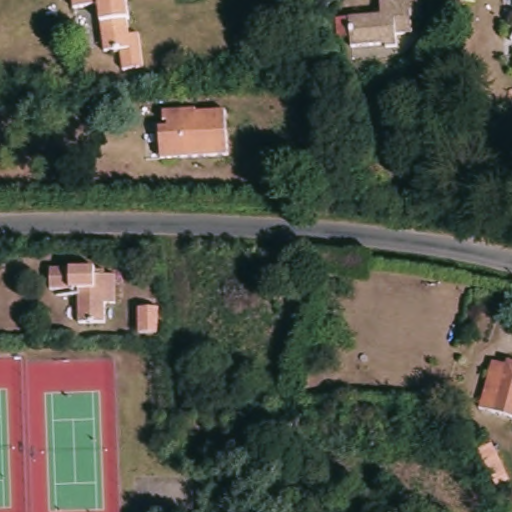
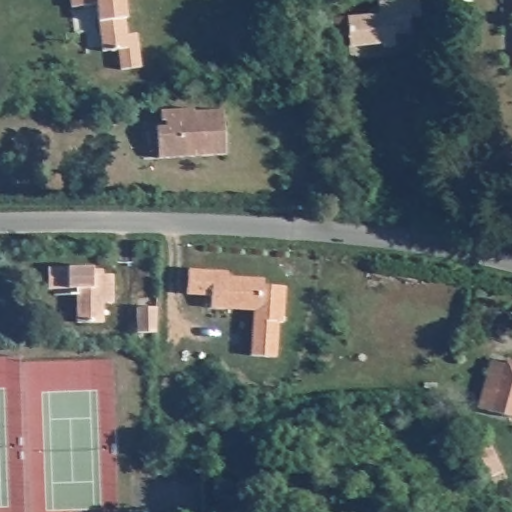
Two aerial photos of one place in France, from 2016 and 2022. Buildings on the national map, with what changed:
unchanged [(123,11),(128,25),(137,24),(146,56),(127,61),(121,44),(114,46),(113,45),(105,46),(91,1),(68,8),(66,0),(123,0),(126,11),(123,11)]
unchanged [(381,18),(380,0),(420,0),(421,15),(411,16),(411,31),(395,33),(395,45),(384,45),(383,41),(348,44),(335,45),(334,21),(347,20),(381,18)]
unchanged [(510,68),(511,66),(511,51),(512,51),(512,68),(510,68)]
unchanged [(164,126),(164,121),(160,121),(160,111),(192,109),(192,111),(219,110),(222,153),(156,158),(153,127),(164,126)]
unchanged [(95,264),(105,264),(105,270),(115,270),(115,299),(104,299),(104,318),(78,318),(79,289),(56,289),(56,283),(50,283),(50,262),(95,262),(95,264)]
new [(190,267),(237,272),(236,277),(264,280),(263,286),(285,289),(280,324),(276,324),(272,359),(248,356),(253,311),(210,306),(212,294),(187,291),(190,267)]
unchanged [(154,336),(135,334),(137,309),(157,311),(154,336)]
unchanged [(512,365),(512,414),(488,407),(500,363),(512,365)]
new [(493,447),(511,482),(498,488),(480,453),(493,447)]
unchanged [(471,485),(462,465),(475,459),(488,487),(475,493),(471,485)]

